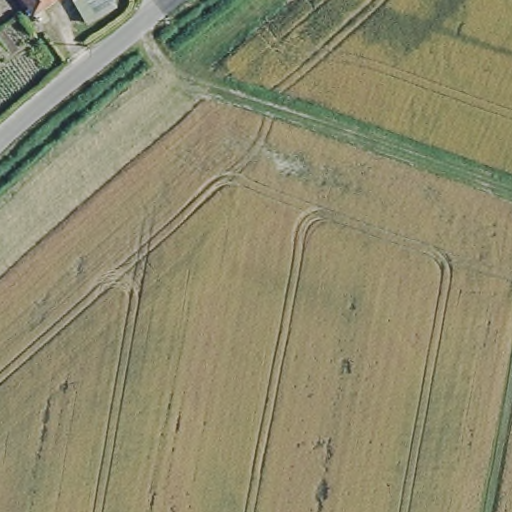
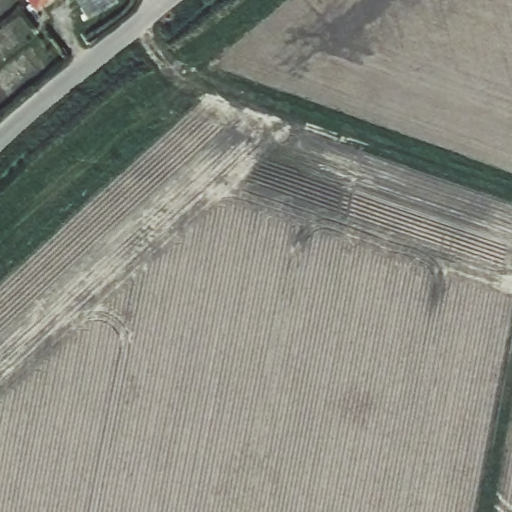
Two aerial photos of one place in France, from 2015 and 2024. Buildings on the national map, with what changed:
unchanged [(26,0),(39,0),(30,6),(26,0)]
unchanged [(85,17),(81,0),(97,0),(101,12),(85,17)]

